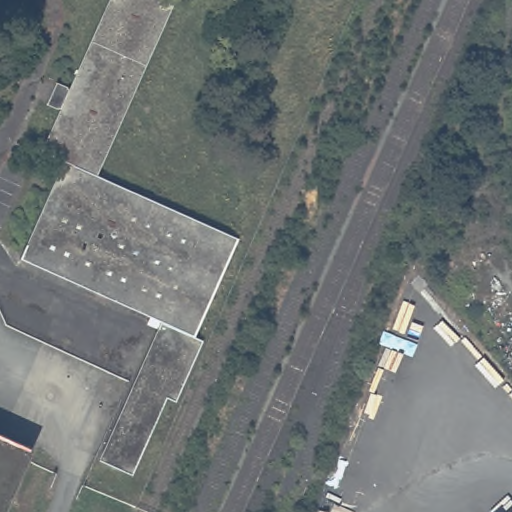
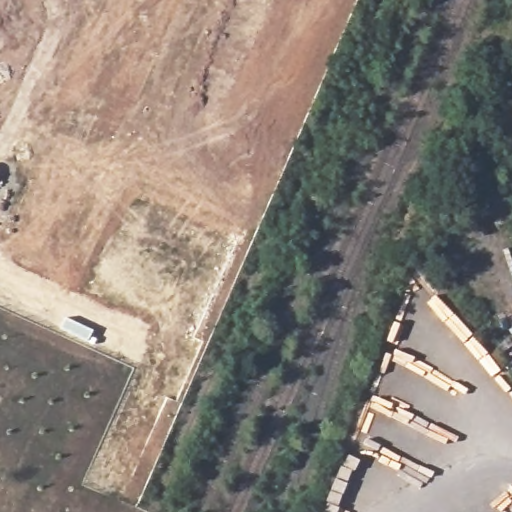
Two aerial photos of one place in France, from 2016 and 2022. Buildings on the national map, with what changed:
demolished [(21,264),(65,168),(41,157),(112,0),(179,0),(98,182),(238,243),(195,341),(203,345),(176,407),(167,403),(133,481),(100,466),(158,332),(161,325),(21,264)]
demolished [(6,512),(0,512),(0,434),(34,449),(6,512)]

